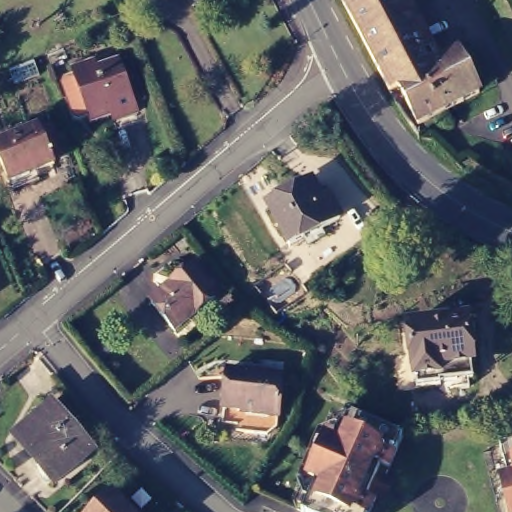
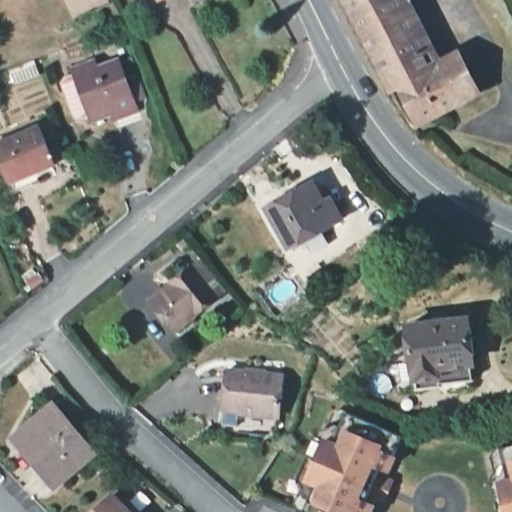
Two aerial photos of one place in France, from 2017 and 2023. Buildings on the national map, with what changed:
unchanged [(393,0),(428,67),(457,52),(477,93),(417,124),(397,87),(390,92),(344,0),(393,0)]
unchanged [(105,109),(85,117),(65,65),(89,56),(92,63),(113,55),(115,57),(123,54),(140,94),(130,97),(133,106),(117,112),(107,115),(105,109)]
unchanged [(0,154),(0,137),(37,121),(53,160),(36,167),(40,176),(30,179),(13,186),(10,177),(0,154)]
unchanged [(290,244),(267,202),(311,179),(318,191),(324,187),(328,196),(340,217),(290,244)]
unchanged [(150,301),(191,267),(216,297),(175,331),(150,301)]
unchanged [(414,380),(407,316),(467,308),(473,355),(470,355),(472,370),(467,371),(468,378),(456,380),(455,372),(439,374),(439,377),(414,380)]
unchanged [(277,405),(275,417),(267,425),(237,423),(237,416),(222,415),(223,400),(222,400),(226,360),(283,367),(278,405),(277,405)]
unchanged [(351,402),(408,427),(389,470),(396,473),(389,490),(382,487),(371,512),(323,512),(308,505),(320,473),(313,471),(330,432),(337,435),(351,402)]
unchanged [(25,435),(53,411),(92,457),(55,490),(41,473),(15,443),(25,435)]
unchanged [(500,442),(512,439),(512,512),(509,512),(500,478),(508,477),(500,442)]
unchanged [(137,512),(95,512),(117,491),(137,512)]

